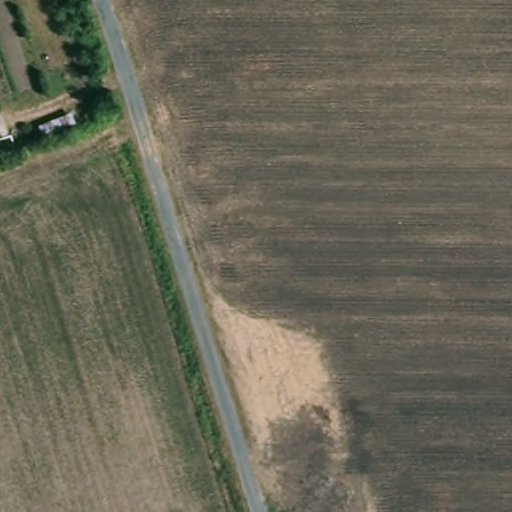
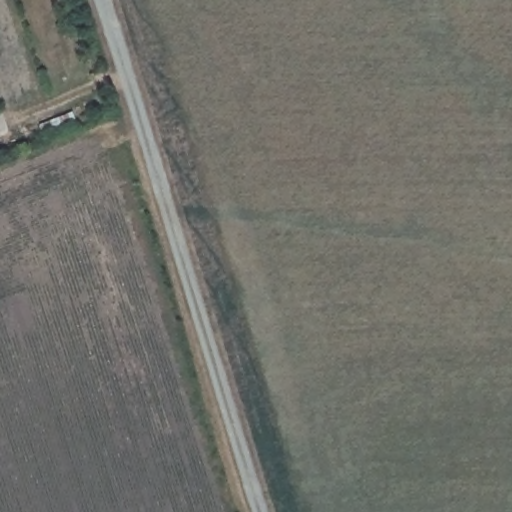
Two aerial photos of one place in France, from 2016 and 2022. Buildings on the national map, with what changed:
[]

